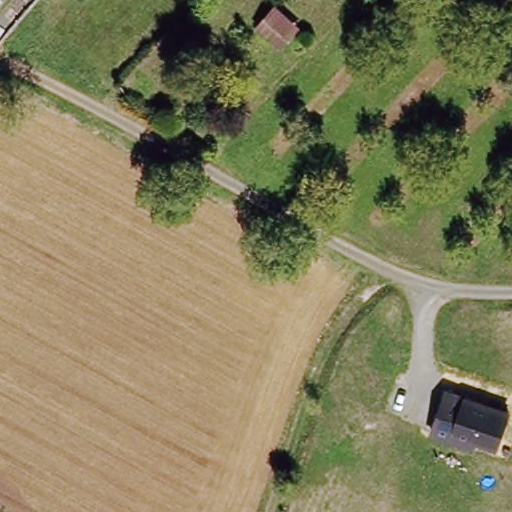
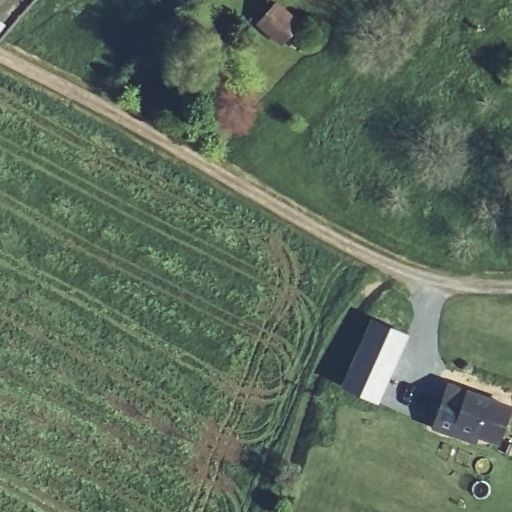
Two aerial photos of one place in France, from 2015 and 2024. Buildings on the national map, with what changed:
unchanged [(278,44),(271,38),(252,23),(268,2),(288,17),(295,23),(278,44)]
new [(370,317),(410,334),(378,405),(339,386),(370,317)]
unchanged [(512,402),(512,407),(499,442),(483,435),(480,445),(432,429),(445,380),(512,402)]

